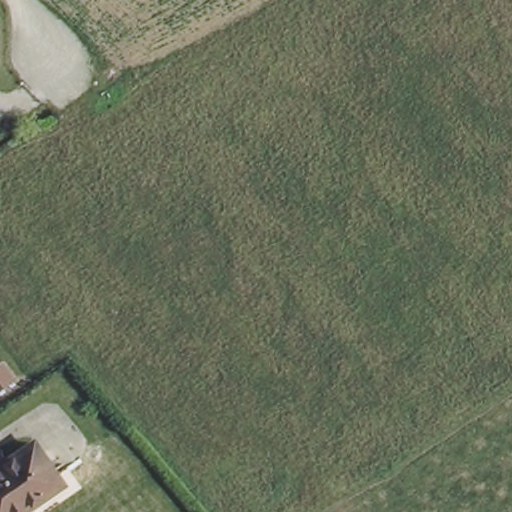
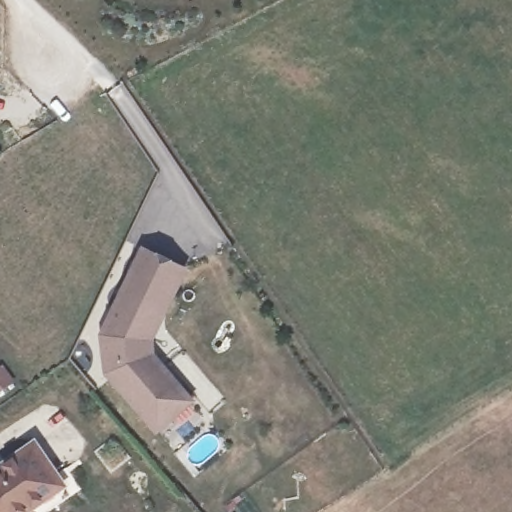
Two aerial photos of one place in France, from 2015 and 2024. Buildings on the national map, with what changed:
new [(99,332),(141,246),(188,268),(154,339),(156,355),(195,401),(155,435),(103,374),(99,332)]
unchanged [(15,364),(24,378),(6,389),(0,381),(0,373),(15,364)]
unchanged [(63,478),(13,512),(0,512),(0,464),(36,440),(63,478)]

